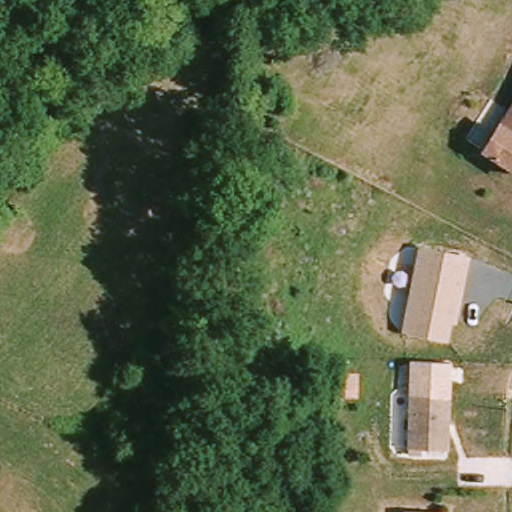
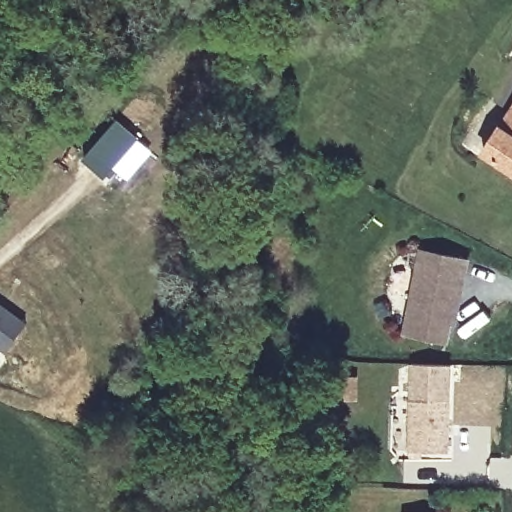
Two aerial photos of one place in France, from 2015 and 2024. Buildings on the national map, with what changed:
unchanged [(486,153),(512,113),(512,169),(486,153)]
new [(113,119),(136,139),(102,177),(80,156),(113,119)]
unchanged [(473,258),(460,326),(453,324),(450,342),(403,333),(420,247),(473,258)]
new [(5,353),(0,349),(0,305),(26,324),(5,353)]
unchanged [(409,401),(410,362),(450,363),(448,402),(409,401)]
unchanged [(335,401),(334,373),(359,374),(360,402),(335,401)]
unchanged [(447,455),(408,455),(409,401),(448,402),(447,455)]

